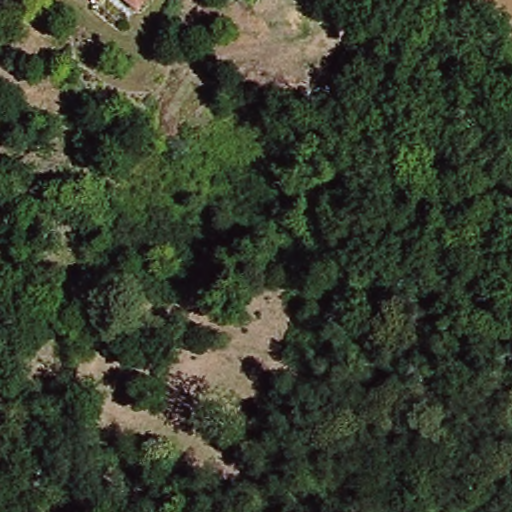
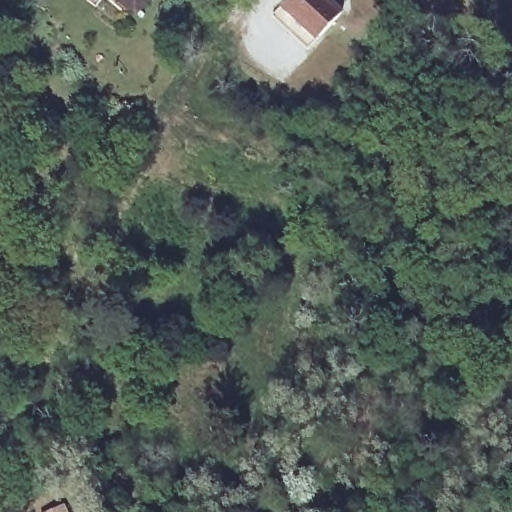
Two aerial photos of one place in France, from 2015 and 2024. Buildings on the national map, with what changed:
unchanged [(87,0),(96,0),(92,4),(87,0)]
unchanged [(119,0),(142,0),(134,11),(119,0)]
new [(331,0),(345,14),(322,40),(312,51),(275,17),(286,6),(292,0),(331,0)]

